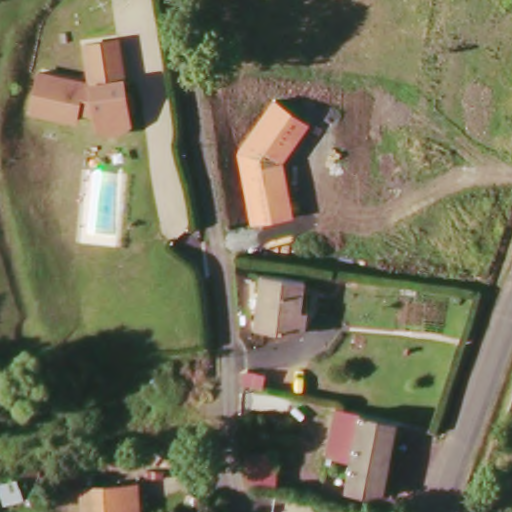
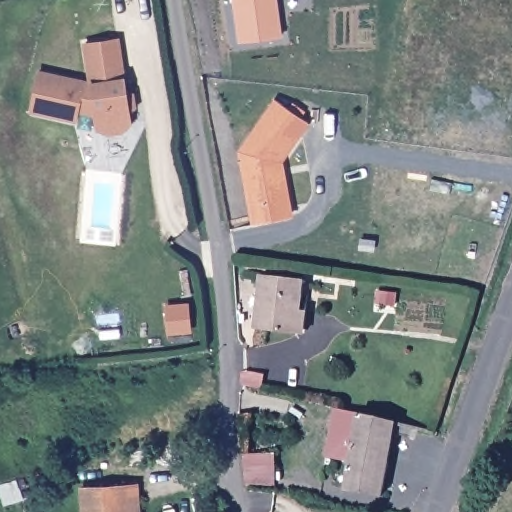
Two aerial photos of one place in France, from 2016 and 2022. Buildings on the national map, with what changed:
new [(276,0),(281,38),(237,44),(231,0),(276,0)]
unchanged [(118,40),(122,69),(91,74),(86,45),(118,40)]
unchanged [(130,111),(130,124),(122,131),(110,133),(100,128),(96,107),(78,109),(77,120),(32,111),(40,73),(82,82),(84,91),(93,90),(92,84),(124,79),(126,91),(132,93),(135,107),(130,111)]
unchanged [(251,225),(238,154),(274,100),(309,124),(284,162),(294,217),(251,225)]
unchanged [(299,280),(299,295),(305,296),(306,314),(299,314),(297,332),(254,331),(256,278),(299,280)]
unchanged [(260,382),(239,377),(238,361),(260,366),(260,382)]
unchanged [(395,424),(379,500),(343,490),(349,464),(325,458),(335,410),(360,416),(395,424)]
unchanged [(244,488),(240,456),(249,452),(251,433),(277,432),(277,485),(244,488)]
unchanged [(136,488),(137,512),(81,512),(80,489),(136,488)]

